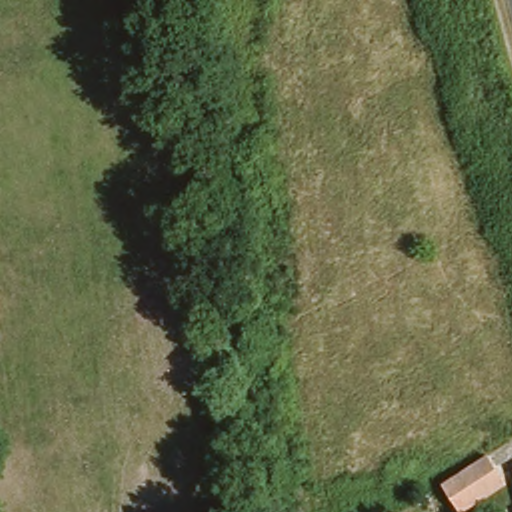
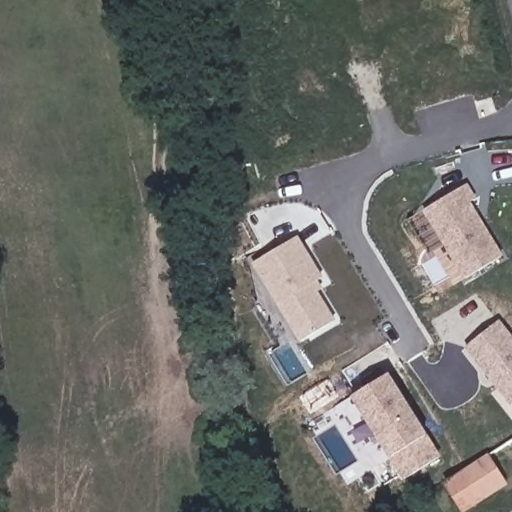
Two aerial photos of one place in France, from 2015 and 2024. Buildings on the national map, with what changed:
new [(466,182),(477,197),(469,199),(501,256),(465,279),(422,209),(466,182)]
new [(294,237),(323,282),(315,286),(335,319),(296,342),(252,264),(294,237)]
new [(512,338),(512,404),(466,346),(498,320),(512,338)]
new [(389,376),(440,456),(403,479),(351,397),(389,376)]
unchanged [(443,479),(486,451),(506,484),(466,512),(464,512),(443,479)]

